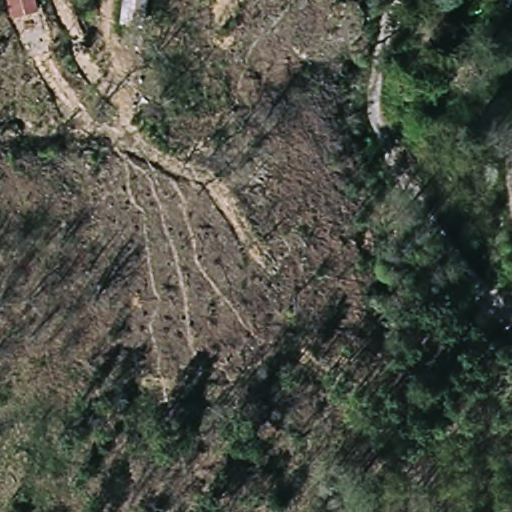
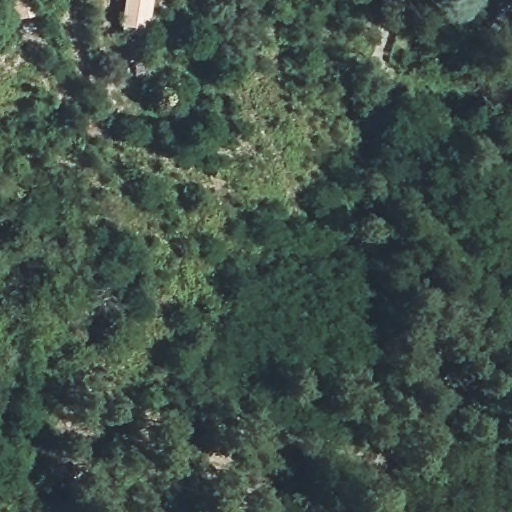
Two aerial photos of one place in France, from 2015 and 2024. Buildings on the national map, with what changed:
unchanged [(40,11),(14,17),(9,0),(37,0),(40,11)]
unchanged [(145,26),(122,23),(125,0),(149,0),(145,26)]

